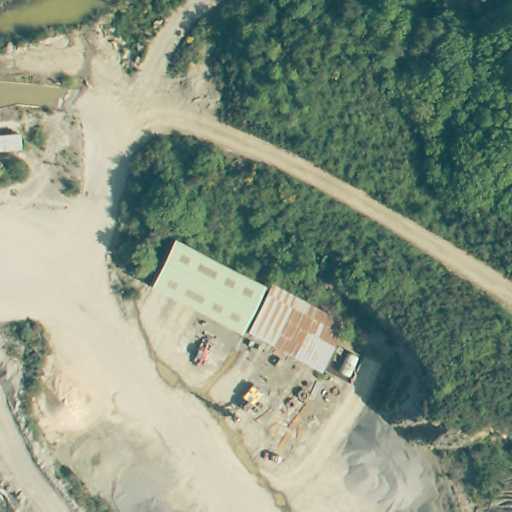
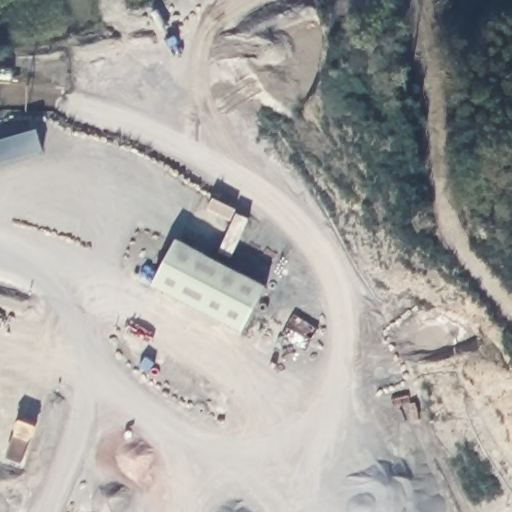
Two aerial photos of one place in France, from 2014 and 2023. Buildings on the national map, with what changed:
new [(0,157),(0,142),(16,136),(21,150),(0,157)]
unchanged [(266,288),(243,336),(159,294),(178,244),(266,288)]
demolished [(348,329),(323,375),(251,336),(275,291),(348,329)]

